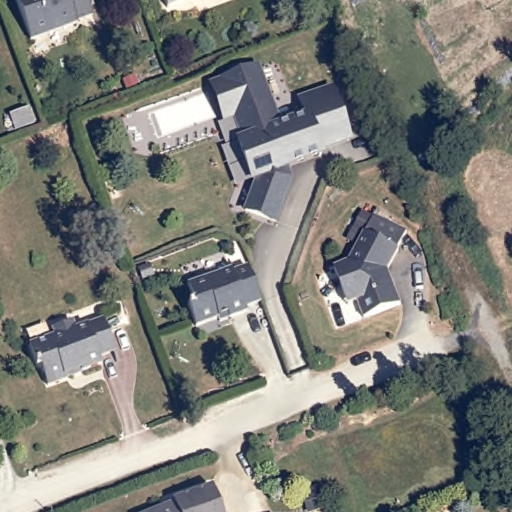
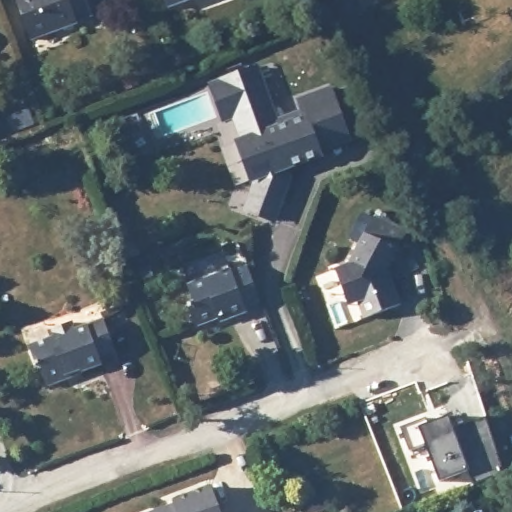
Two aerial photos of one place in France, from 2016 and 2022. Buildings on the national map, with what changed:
unchanged [(76,14),(78,18),(35,35),(22,0),(92,0),(95,8),(76,14)]
unchanged [(163,0),(187,0),(166,8),(163,0)]
unchanged [(276,124),(302,115),(298,103),(329,92),(348,144),(317,155),(319,160),(279,175),(285,189),(274,224),(264,220),(245,214),(252,190),(254,184),(251,185),(237,145),(241,144),(233,120),(227,123),(224,124),(210,88),(213,87),(257,71),(276,124)]
unchanged [(33,110),(38,126),(19,133),(11,117),(33,110)]
unchanged [(358,236),(392,247),(387,275),(400,310),(365,323),(356,300),(344,304),(334,276),(350,270),(358,236)]
unchanged [(264,304),(250,309),(249,317),(222,327),(217,324),(200,330),(191,311),(195,307),(189,290),(233,273),(236,275),(251,269),(264,304)]
unchanged [(44,339),(53,329),(72,321),(76,329),(102,318),(113,346),(100,352),(101,360),(82,369),(81,364),(62,372),(61,379),(44,386),(39,371),(33,370),(26,348),(44,339)]
new [(424,416),(428,423),(448,415),(454,429),(484,420),(502,476),(472,485),(466,472),(438,481),(425,446),(407,453),(397,427),(424,416)]
unchanged [(174,509),(172,501),(206,487),(215,512),(168,512),(174,509)]
unchanged [(161,509),(163,512),(154,512),(161,509)]

